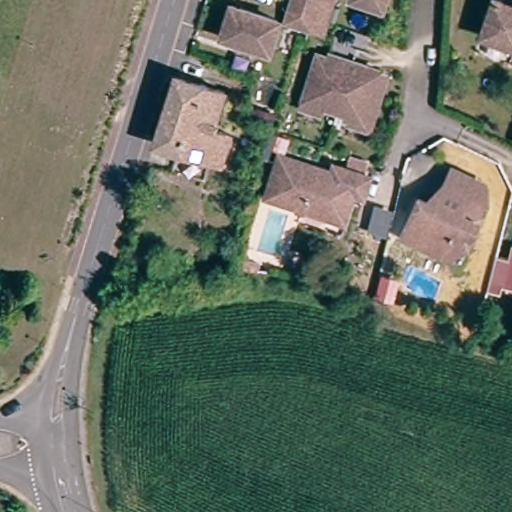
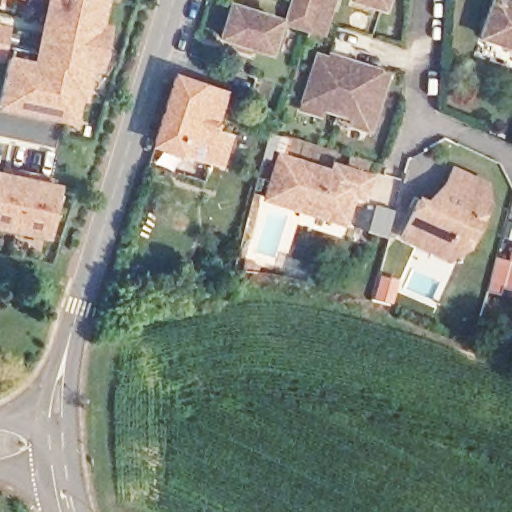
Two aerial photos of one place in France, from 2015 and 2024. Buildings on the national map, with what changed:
new [(12,62),(54,73),(70,0),(104,0),(100,27),(96,27),(105,36),(97,76),(89,75),(82,106),(78,130),(70,123),(3,109),(12,62)]
new [(48,59),(60,9),(50,6),(51,0),(70,0),(54,73),(12,62),(15,52),(48,59)]
new [(111,3),(109,0),(112,0),(111,3)]
unchanged [(223,32),(232,0),(279,15),(269,48),(249,41),(234,36),(223,32)]
unchanged [(325,30),(293,19),(299,0),(333,0),(325,30)]
unchanged [(381,9),(353,0),(384,0),(381,9)]
unchanged [(512,1),(512,45),(485,35),(497,0),(510,0),(512,1)]
new [(5,62),(0,61),(0,30),(11,32),(5,62)]
unchanged [(330,110),(327,118),(308,112),(311,104),(325,62),(336,66),(338,57),(354,63),(370,68),(384,73),(381,81),(390,84),(376,127),(373,135),(355,128),(358,120),(330,110)]
unchanged [(205,134),(214,137),(220,139),(209,175),(207,174),(149,155),(171,82),(216,97),(205,134)]
unchanged [(320,176),(323,166),(360,179),(353,199),(342,194),(337,209),(342,211),(337,228),(261,202),(274,160),(320,176)]
new [(6,170),(14,172),(28,175),(17,232),(0,229),(0,176),(5,177),(6,170)]
new [(43,178),(49,184),(47,190),(56,192),(47,242),(17,232),(28,175),(43,178)]
unchanged [(472,249),(459,243),(448,264),(408,243),(427,206),(442,214),(453,190),(460,176),(485,188),(477,203),(491,210),(472,249)]
unchanged [(505,272),(511,252),(512,252),(512,274),(505,272)]

